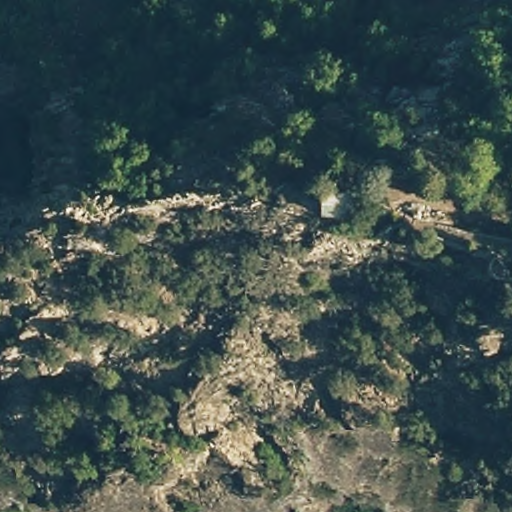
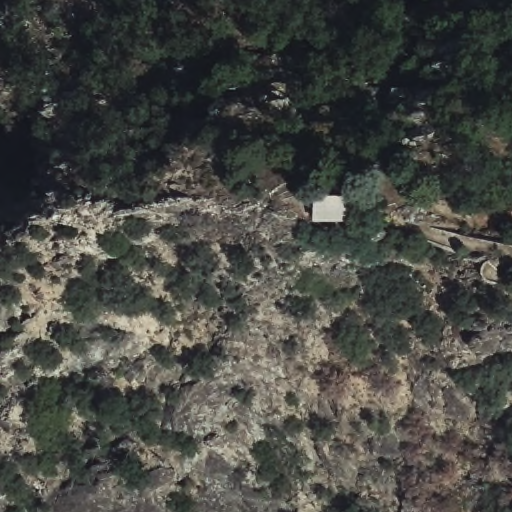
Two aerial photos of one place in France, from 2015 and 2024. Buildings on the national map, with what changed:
unchanged [(353,194),(352,217),(315,218),(315,192),(353,194)]

